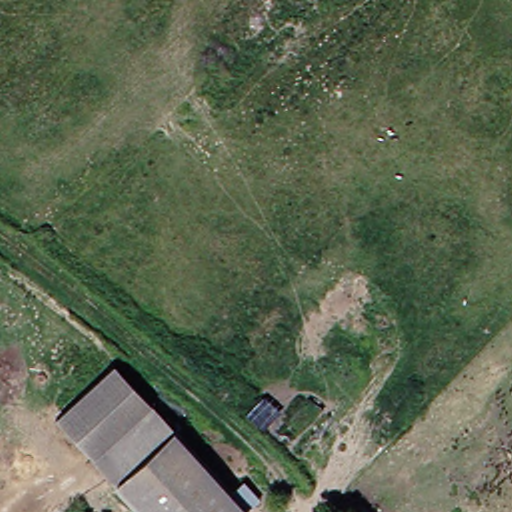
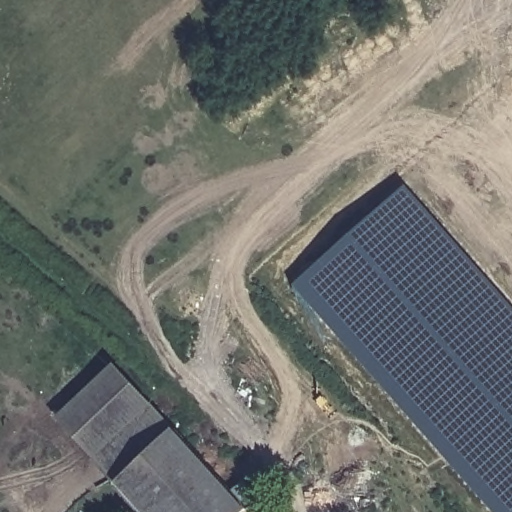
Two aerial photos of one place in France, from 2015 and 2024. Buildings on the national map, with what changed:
new [(512,307),(512,512),(494,512),(293,285),(405,187),(512,307)]
unchanged [(47,415),(103,361),(142,403),(83,456),(47,415)]
unchanged [(229,512),(134,512),(83,456),(142,403),(218,488),(232,477),(248,496),(229,512)]

